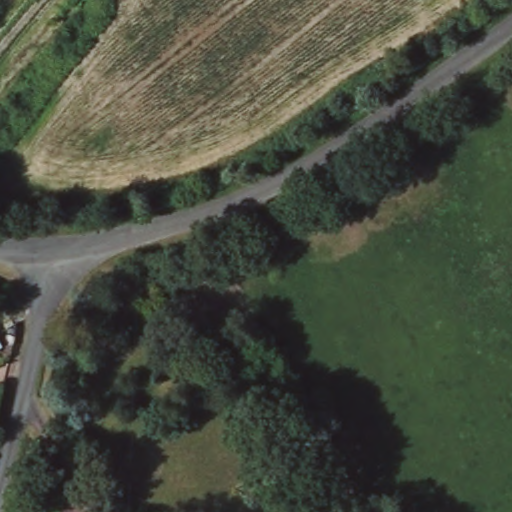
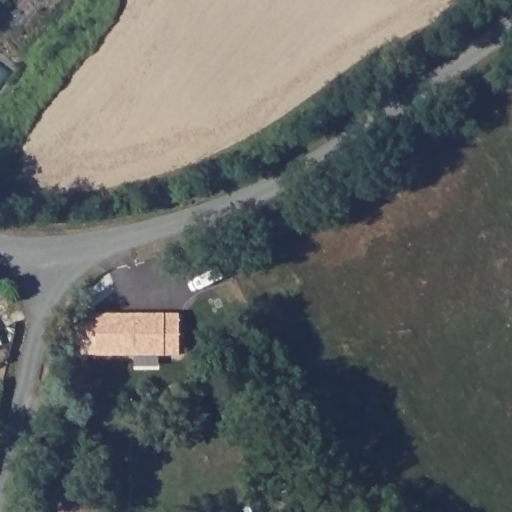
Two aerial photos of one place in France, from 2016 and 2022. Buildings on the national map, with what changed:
new [(95,357),(94,313),(181,314),(181,358),(95,357)]

